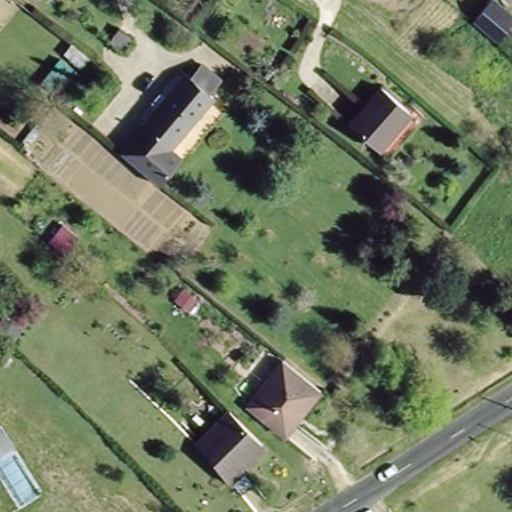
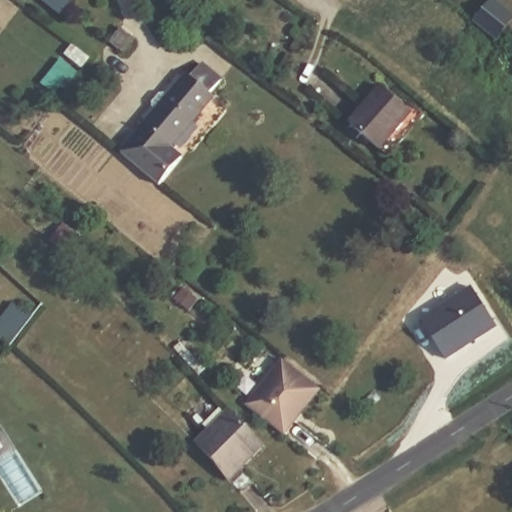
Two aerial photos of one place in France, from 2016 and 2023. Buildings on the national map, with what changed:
unchanged [(34,8),(24,0),(39,0),(34,8)]
unchanged [(512,11),(512,26),(501,41),(478,23),(497,0),(498,0),(512,11)]
unchanged [(109,42),(120,29),(132,39),(121,52),(109,42)]
unchanged [(212,94),(170,147),(142,126),(184,72),(212,94)]
unchanged [(413,115),(384,152),(352,127),(382,90),(413,115)]
new [(471,287),(497,327),(445,360),(420,319),(471,287)]
unchanged [(9,349),(0,343),(0,325),(17,338),(9,349)]
unchanged [(322,388),(287,432),(251,403),(285,359),(322,388)]
unchanged [(232,411),(267,445),(234,478),(229,482),(196,447),(201,442),(232,411)]
unchanged [(129,512),(106,512),(118,501),(129,512)]

